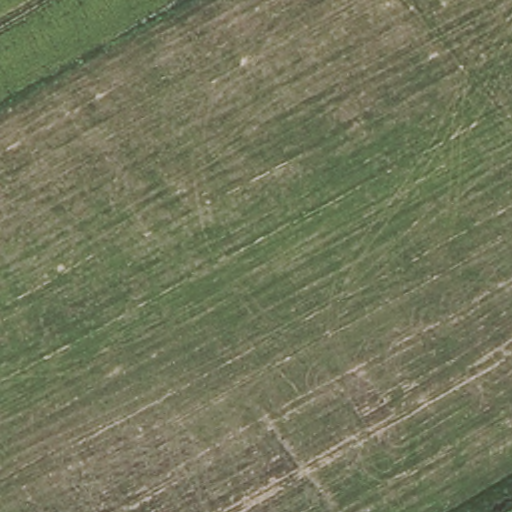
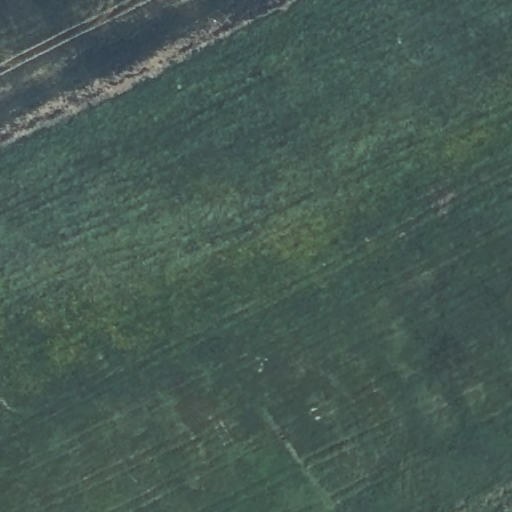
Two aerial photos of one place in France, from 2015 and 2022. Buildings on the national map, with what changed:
[]

